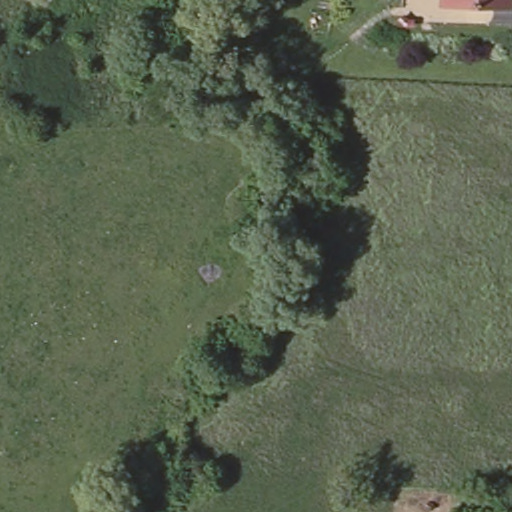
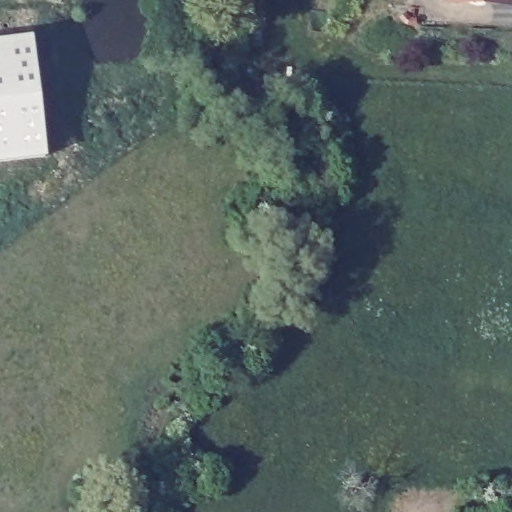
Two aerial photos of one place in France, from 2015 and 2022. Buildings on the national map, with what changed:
new [(16,111),(5,40),(30,37),(43,157),(0,162),(0,115),(16,111)]
new [(5,40),(16,111),(0,115),(0,41),(5,40)]

